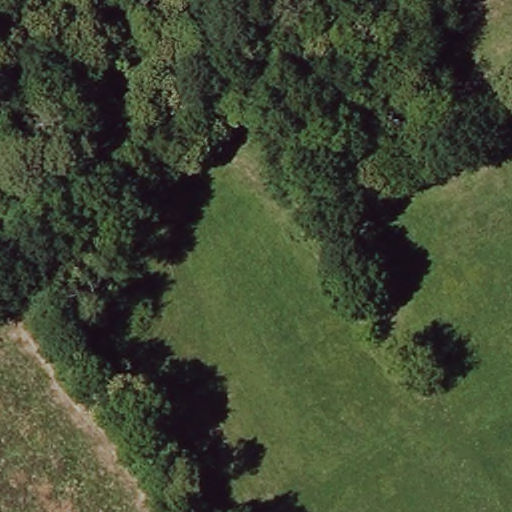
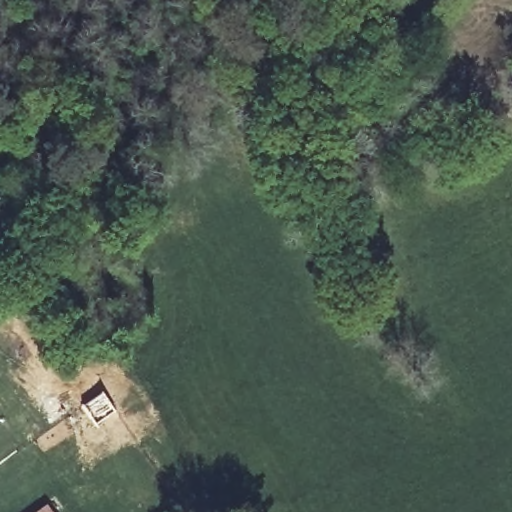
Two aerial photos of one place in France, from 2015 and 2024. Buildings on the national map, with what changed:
new [(52,512),(34,512),(45,503),(52,512)]

